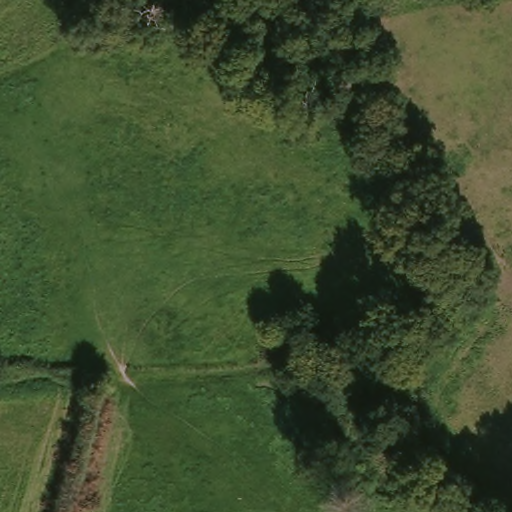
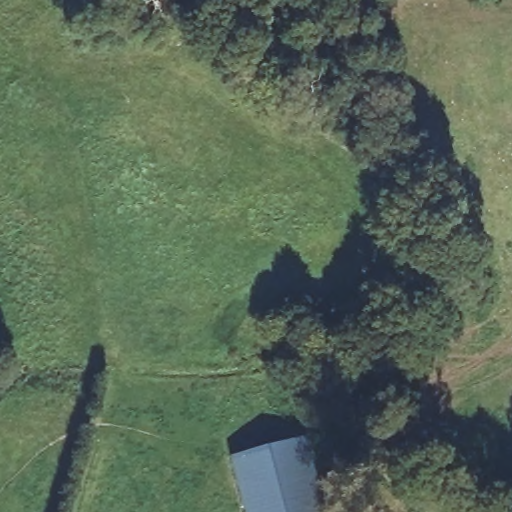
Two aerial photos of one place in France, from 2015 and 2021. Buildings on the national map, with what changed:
new [(229,458),(309,437),(327,512),(243,512),(229,458)]

